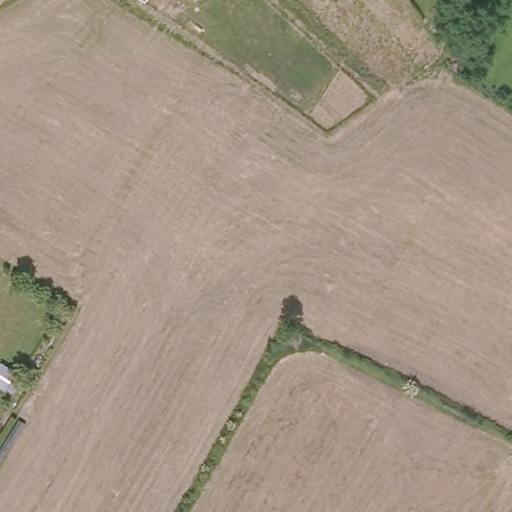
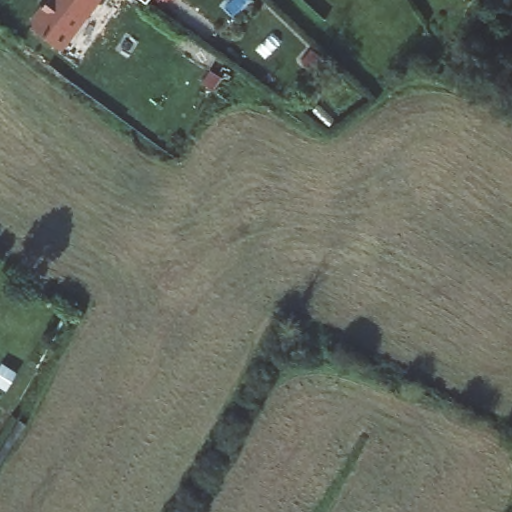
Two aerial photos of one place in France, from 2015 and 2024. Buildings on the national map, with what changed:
new [(61,50),(31,26),(50,0),(100,0),(61,50)]
unchanged [(145,4),(140,0),(148,0),(145,4)]
unchanged [(161,1),(160,0),(161,0),(161,1)]

